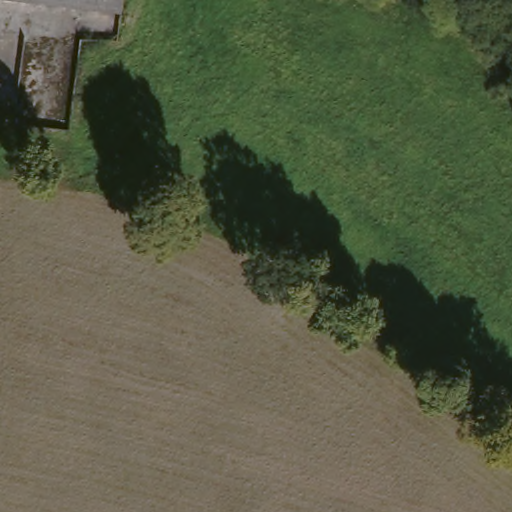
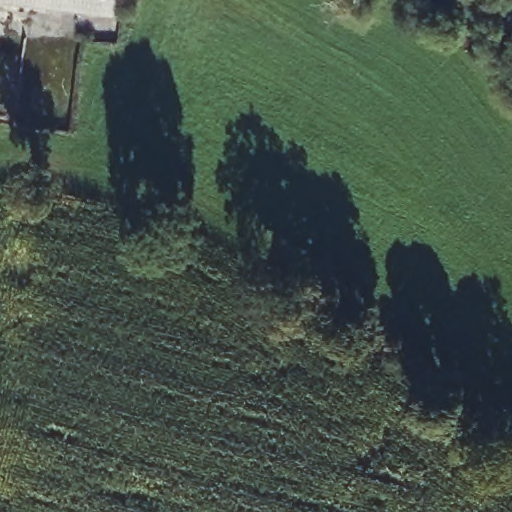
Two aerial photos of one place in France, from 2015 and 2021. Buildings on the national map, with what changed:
unchanged [(112,13),(38,0),(114,0),(112,13)]

